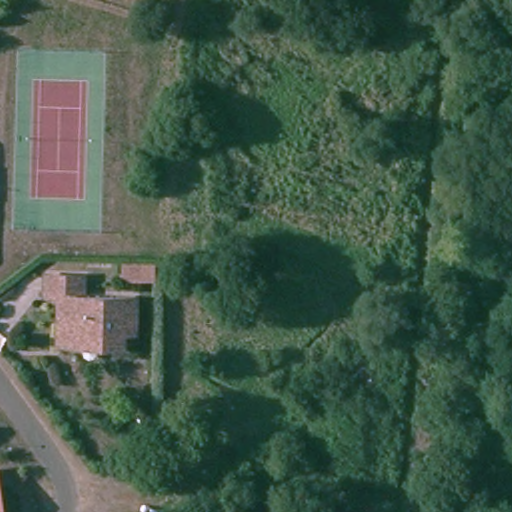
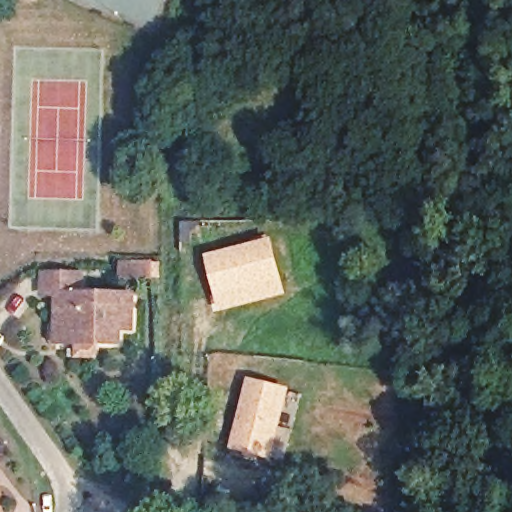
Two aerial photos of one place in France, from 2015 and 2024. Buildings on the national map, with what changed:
new [(271,237),(287,295),(217,312),(204,254),(271,237)]
unchanged [(150,272),(124,272),(123,255),(150,256),(150,272)]
unchanged [(54,296),(42,295),(40,275),(81,277),(81,294),(139,297),(138,327),(127,327),(126,342),(104,342),(54,342),(54,296)]
new [(247,378),(290,389),(272,461),(229,450),(247,378)]

